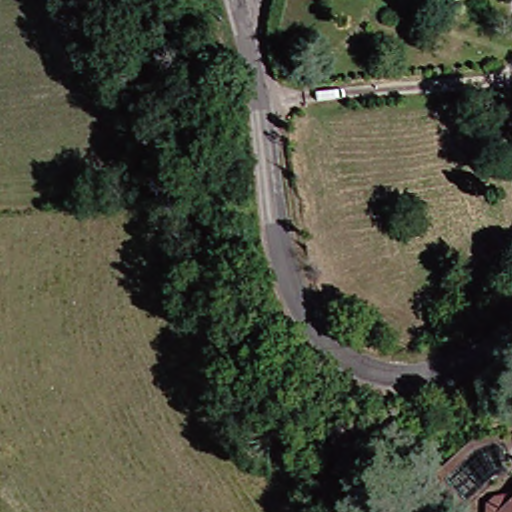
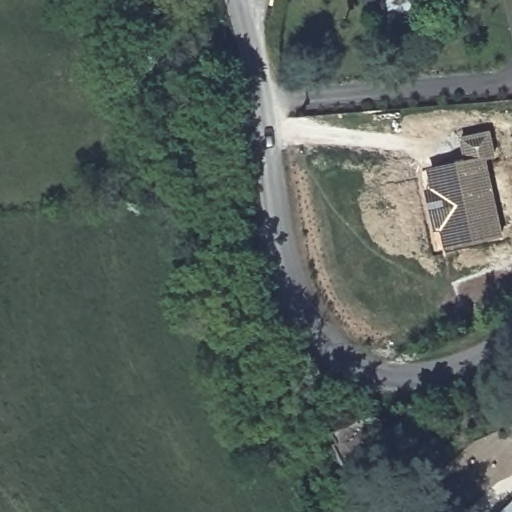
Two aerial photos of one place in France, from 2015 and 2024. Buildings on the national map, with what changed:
new [(496,158),(486,160),(502,237),(444,250),(441,231),(433,232),(424,189),(432,188),(428,168),(464,159),(460,137),(491,130),(496,158)]
new [(360,475),(354,463),(344,468),(333,446),(338,444),(332,432),(364,417),(378,445),(365,452),(373,469),(360,475)]
unchanged [(496,512),(512,497),(512,512),(496,512)]

